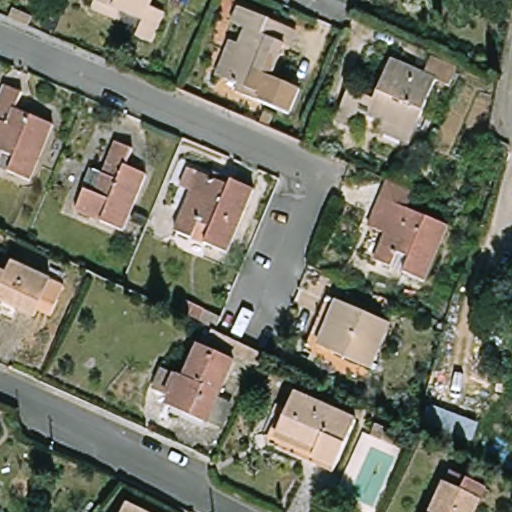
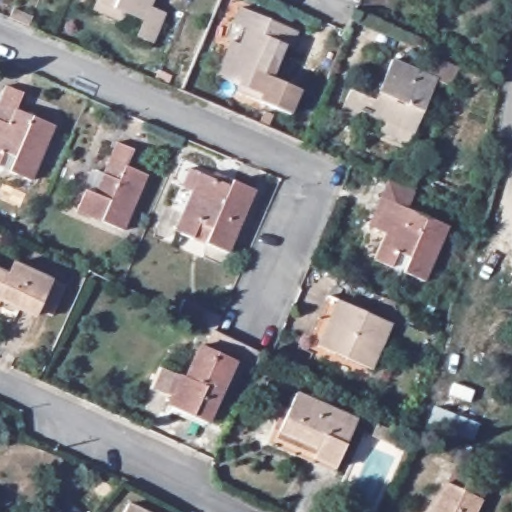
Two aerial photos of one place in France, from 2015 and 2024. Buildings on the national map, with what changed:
unchanged [(96,9),(100,0),(101,0),(156,0),(155,3),(154,5),(169,12),(168,14),(161,30),(155,41),(141,35),(142,32),(144,28),(146,21),(130,14),(127,22),(96,9)]
unchanged [(250,29),(237,24),(240,15),(241,13),(243,8),(301,32),(294,47),(288,44),(276,71),(275,75),(303,88),(301,92),(292,114),(240,91),(241,86),(242,83),(230,78),(222,74),(236,41),(243,44),(249,31),(250,29)]
unchanged [(377,134),(381,124),(360,114),(353,129),(338,122),(349,98),(351,92),(375,102),(392,63),(433,81),(440,65),(455,72),(449,88),(435,82),(433,88),(415,128),(414,132),(412,137),(407,147),(377,134)]
unchanged [(50,150),(43,164),(43,165),(40,170),(40,172),(35,182),(13,172),(20,159),(20,157),(8,152),(3,162),(2,167),(0,166),(0,113),(8,94),(12,85),(25,91),(19,108),(60,126),(57,133),(50,150)]
unchanged [(135,214),(134,216),(127,230),(80,209),(83,202),(90,188),(100,192),(121,144),(138,150),(137,153),(132,163),(131,167),(152,175),(150,179),(135,214)]
unchanged [(258,194),(255,203),(253,205),(237,243),(236,245),(232,254),(211,245),(217,230),(206,226),(202,235),(201,239),(200,241),(179,231),(187,211),(176,207),(193,169),(205,174),(217,180),(220,173),(236,180),(260,191),(258,194)]
unchanged [(450,225),(438,254),(432,267),(426,281),(403,272),(403,271),(375,259),(376,257),(377,255),(379,251),(382,243),(383,241),(385,236),(375,231),(375,230),(381,217),(375,214),(388,180),(415,191),(408,208),(450,225)]
unchanged [(49,298),(46,303),(40,317),(2,299),(0,304),(0,270),(13,276),(19,262),(57,280),(55,285),(49,298)]
unchanged [(391,331),(376,368),(323,346),(334,323),(323,318),(333,296),(344,301),(395,323),(391,331)]
unchanged [(230,351),(228,354),(205,343),(211,329),(214,331),(262,353),(257,363),(230,351)]
unchanged [(219,435),(202,427),(163,408),(165,404),(180,377),(180,375),(185,377),(200,345),(234,362),(232,366),(216,398),(215,400),(232,408),(219,435)]
unchanged [(281,440),(286,431),(289,425),(303,391),(364,418),(360,427),(345,461),(344,465),(330,459),(322,455),(320,458),(281,440)]
unchanged [(433,505),(445,481),(447,482),(453,471),(487,487),(475,512),(430,512),(432,507),(433,505)]
unchanged [(152,512),(126,512),(131,501),(152,512)]

